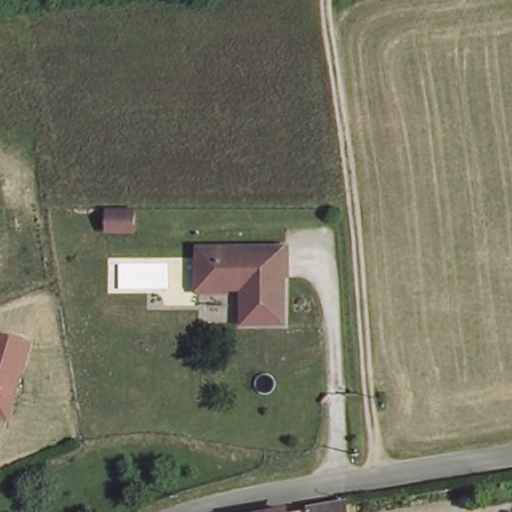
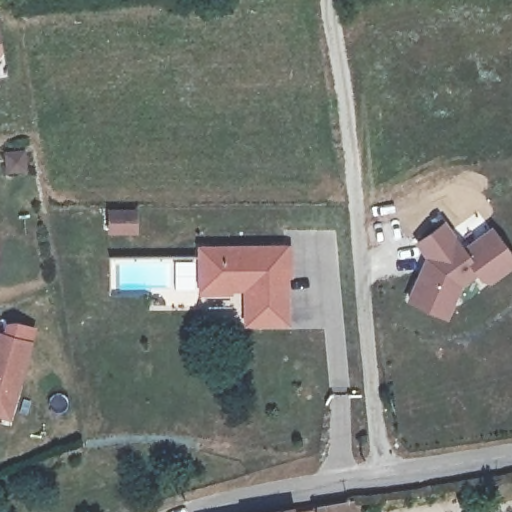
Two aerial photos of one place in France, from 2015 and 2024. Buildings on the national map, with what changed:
new [(0,54),(0,41),(2,51),(0,54)]
new [(106,233),(106,209),(131,209),(131,233),(106,233)]
demolished [(91,242),(90,219),(115,219),(116,242),(91,242)]
new [(479,281),(475,275),(460,287),(446,319),(403,300),(424,257),(413,242),(445,220),(456,236),(462,246),(492,226),(512,254),(512,266),(489,282),(479,281)]
unchanged [(285,318),(245,320),(243,286),(198,286),(200,245),(283,243),(285,318)]
unchanged [(10,418),(0,416),(0,333),(32,342),(10,418)]
unchanged [(295,510),(350,505),(350,512),(266,512),(295,510)]

